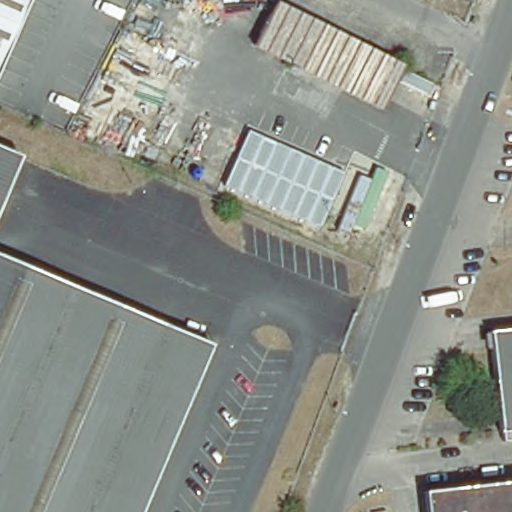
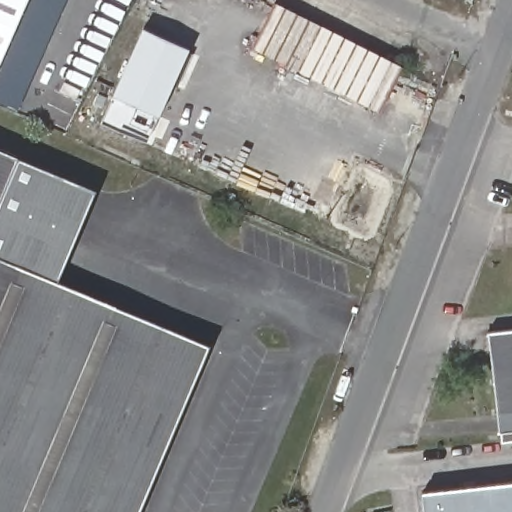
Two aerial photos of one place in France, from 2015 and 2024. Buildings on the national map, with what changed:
unchanged [(0,51),(0,0),(22,0),(0,51)]
unchanged [(375,109),(247,44),(267,5),(394,70),(375,109)]
new [(101,122),(144,28),(189,48),(146,142),(101,122)]
demolished [(344,176),(318,229),(224,185),(248,132),(344,176)]
unchanged [(0,202),(0,151),(18,158),(0,202)]
new [(58,280),(0,257),(0,202),(18,158),(96,191),(58,280)]
unchanged [(138,512),(0,512),(0,257),(210,344),(138,512)]
unchanged [(487,329),(512,327),(512,426),(498,428),(487,329)]
unchanged [(512,486),(512,512),(417,512),(416,496),(512,486)]

